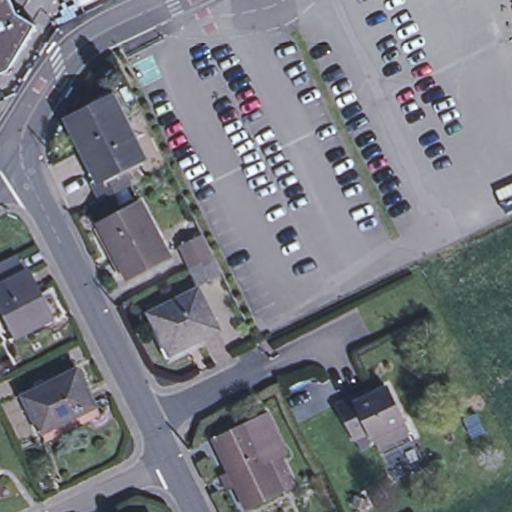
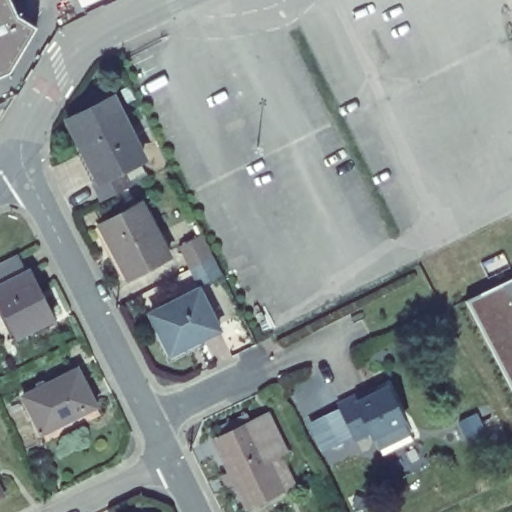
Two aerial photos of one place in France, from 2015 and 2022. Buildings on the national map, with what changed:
unchanged [(31,25),(6,66),(0,69),(0,0),(6,0),(13,13),(31,25)]
unchanged [(79,186),(85,182),(58,131),(83,119),(79,112),(98,103),(128,163),(122,166),(131,182),(116,190),(88,204),(79,186)]
unchanged [(146,198),(174,249),(134,272),(106,220),(146,198)]
unchanged [(197,283),(189,268),(178,246),(201,235),(211,256),(219,272),(197,283)]
unchanged [(0,267),(23,257),(30,273),(33,272),(56,317),(22,334),(0,290),(0,288),(6,285),(0,273),(0,267)]
new [(512,278),(512,390),(465,301),(512,278)]
unchanged [(198,289),(218,328),(170,352),(151,313),(198,289)]
unchanged [(76,370),(94,406),(41,432),(24,396),(76,370)]
unchanged [(338,400),(359,390),(369,384),(372,390),(386,383),(403,416),(408,428),(377,443),(373,435),(359,442),(354,434),(338,400)]
unchanged [(294,488),(283,493),(246,511),(244,507),(213,439),(249,422),(266,415),(286,455),(280,457),(292,483),(294,488)]
unchanged [(0,495),(0,493),(1,495),(0,495)]

